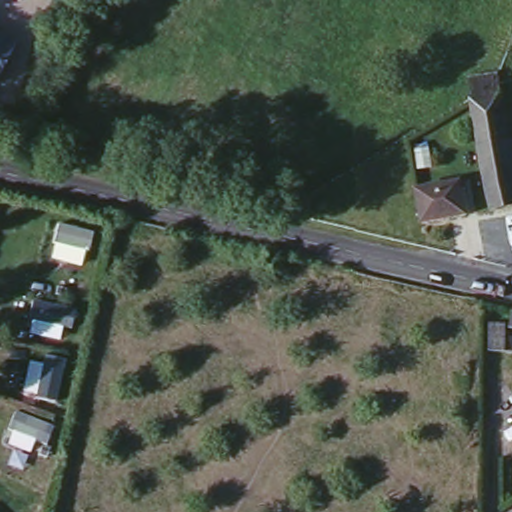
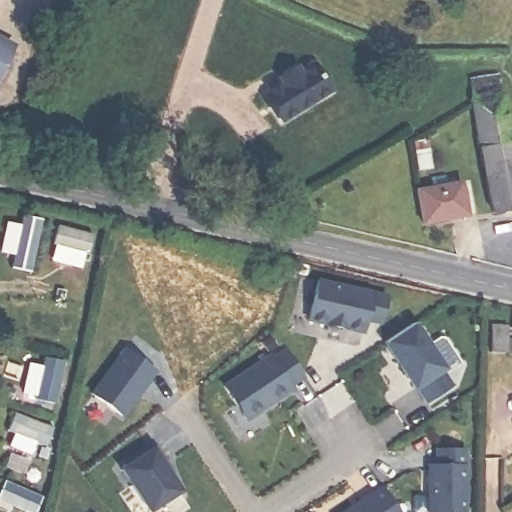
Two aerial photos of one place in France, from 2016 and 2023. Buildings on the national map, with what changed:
unchanged [(15,41),(0,69),(0,34),(15,41)]
new [(269,91),(300,69),(304,75),(318,66),(333,89),(288,120),(269,91)]
unchanged [(472,111),(467,83),(499,77),(512,151),(512,230),(493,234),(472,111)]
unchanged [(465,183),(469,217),(421,220),(420,187),(465,183)]
new [(325,276),(393,293),(386,313),(369,311),(366,324),(315,313),(325,276)]
new [(452,365),(447,368),(456,385),(431,402),(389,340),(422,318),(452,365)]
new [(231,382),(290,345),(306,373),(296,379),(299,387),(249,418),(231,382)]
new [(126,351),(158,374),(127,420),(93,397),(126,351)]
new [(154,443),(185,488),(151,512),(149,512),(120,468),(154,443)]
new [(468,512),(428,512),(429,463),(439,464),(440,445),(470,446),(468,512)]
new [(383,486),(400,512),(345,512),(383,486)]
new [(100,509),(102,512),(96,512),(100,509)]

